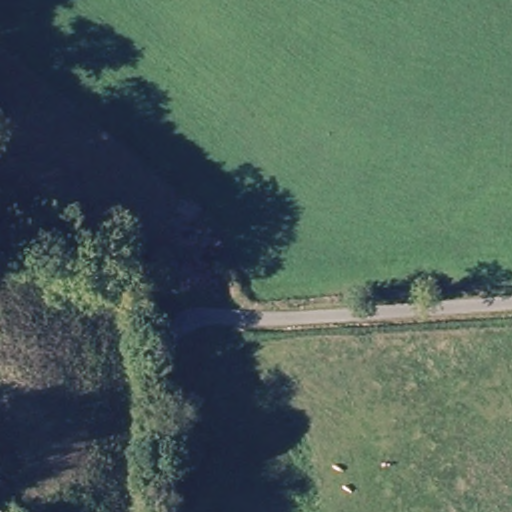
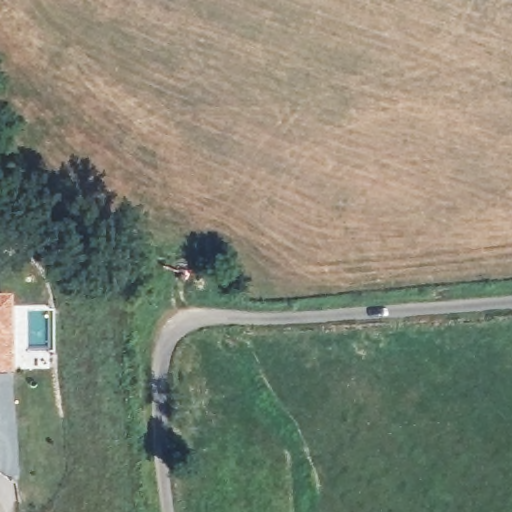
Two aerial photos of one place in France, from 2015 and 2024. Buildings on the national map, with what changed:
new [(13,371),(0,371),(0,295),(11,295),(13,371)]

